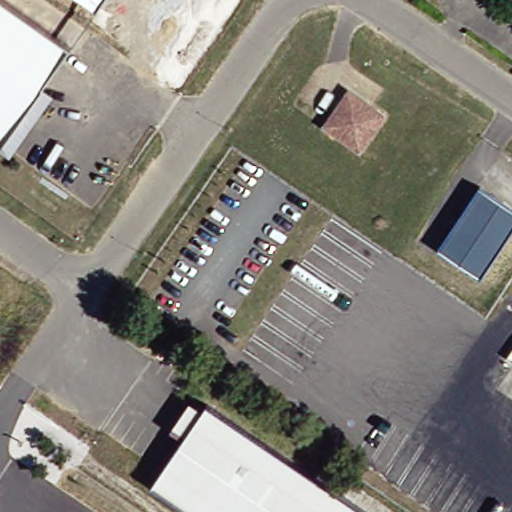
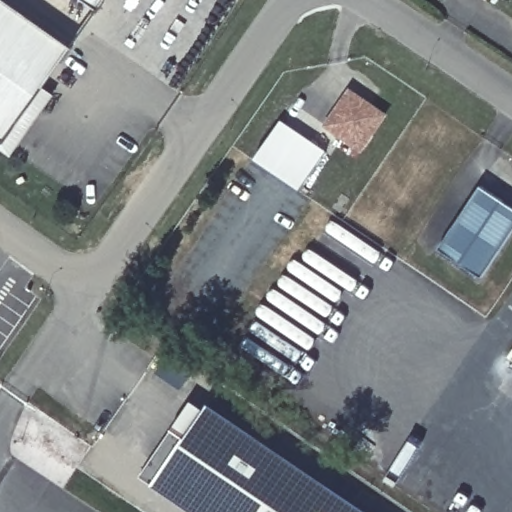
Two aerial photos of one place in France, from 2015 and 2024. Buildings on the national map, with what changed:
unchanged [(71,48),(44,88),(5,145),(0,142),(0,0),(2,0),(71,48)]
unchanged [(83,0),(107,0),(99,11),(83,0)]
unchanged [(44,88),(54,95),(11,157),(0,149),(0,142),(5,145),(44,88)]
unchanged [(350,90),(385,115),(360,150),(325,125),(350,90)]
new [(280,121),(325,152),(299,190),(254,159),(280,121)]
unchanged [(480,186),(512,208),(512,232),(481,279),(437,250),(480,186)]
unchanged [(512,352),(512,357),(510,355),(512,352)]
unchanged [(149,481),(205,399),(371,512),(193,512),(149,481)]

